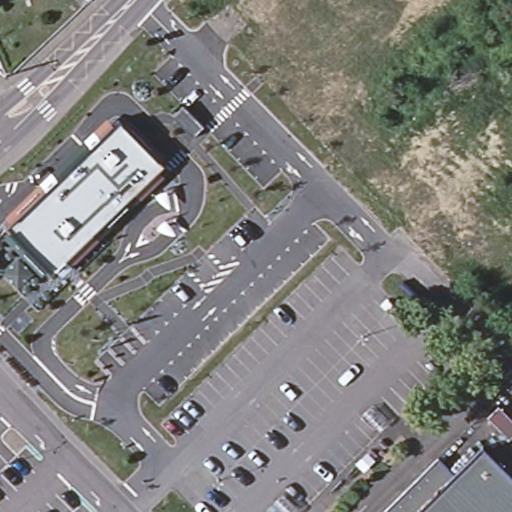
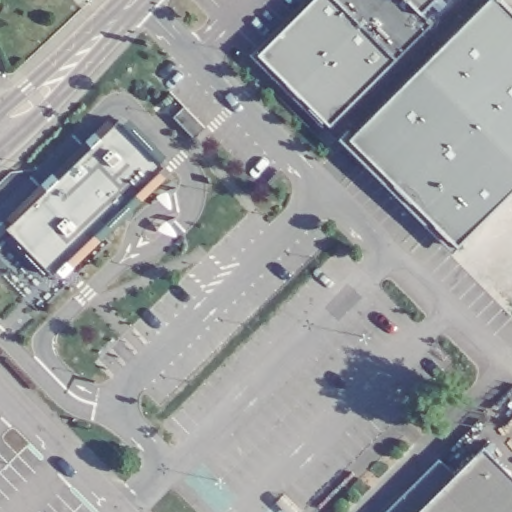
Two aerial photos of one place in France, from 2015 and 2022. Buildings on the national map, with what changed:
new [(432,22),(328,124),(258,54),(313,0),(432,0),(421,11),(432,22)]
new [(512,190),(457,244),(351,137),(487,0),(503,0),(512,9),(512,190)]
unchanged [(166,166),(51,278),(5,231),(120,119),(166,166)]
unchanged [(438,455),(453,470),(482,442),(512,472),(512,512),(380,512),(438,455)]

